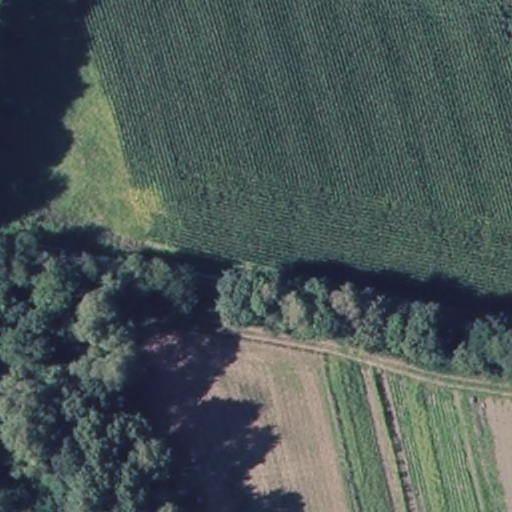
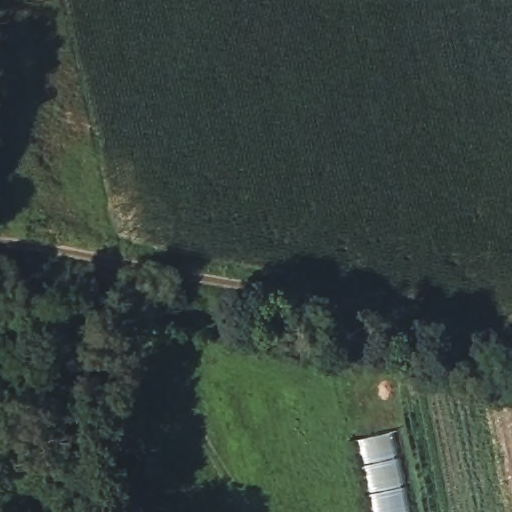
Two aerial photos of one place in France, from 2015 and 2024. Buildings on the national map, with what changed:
new [(408,512),(364,512),(349,441),(389,431),(408,512)]

